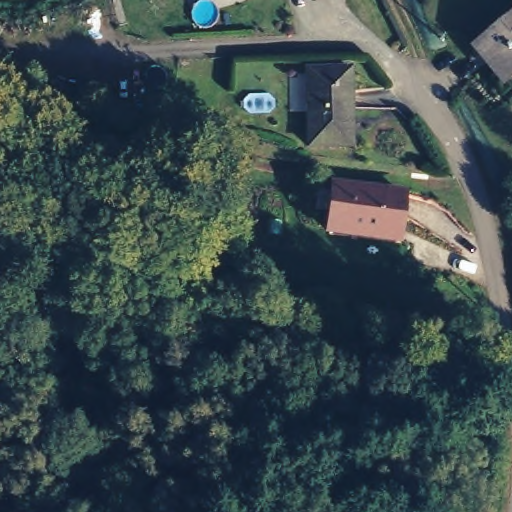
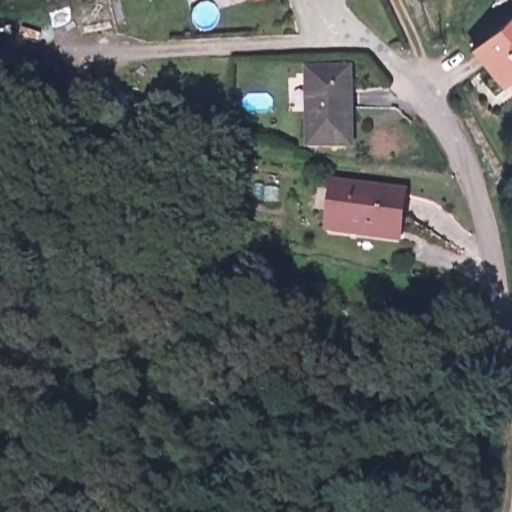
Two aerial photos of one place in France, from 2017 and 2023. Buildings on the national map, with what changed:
unchanged [(512,71),(506,76),(478,42),(512,15),(512,71)]
unchanged [(349,62),(357,142),(312,140),(306,63),(349,62)]
unchanged [(344,231),(324,228),(329,180),(396,188),(391,226),(389,237),(344,231)]

